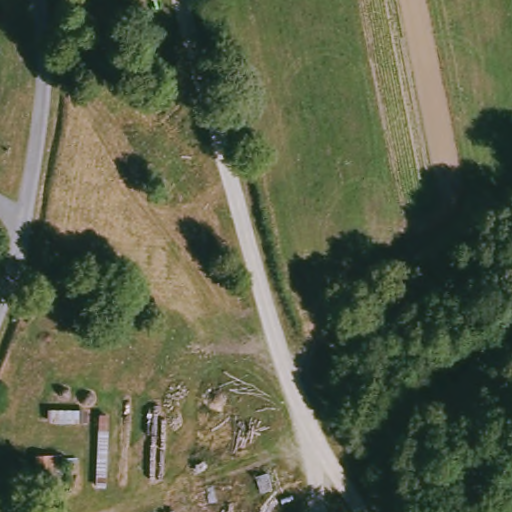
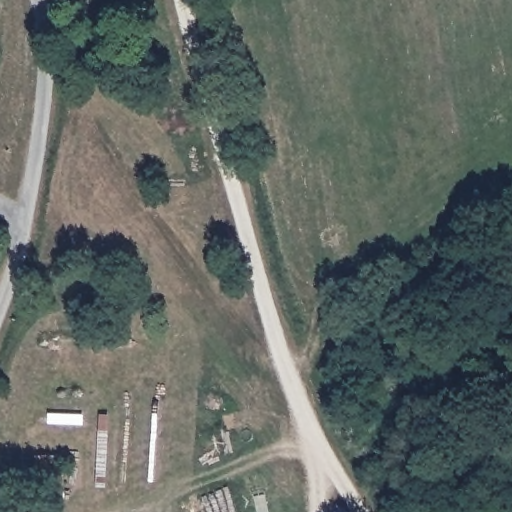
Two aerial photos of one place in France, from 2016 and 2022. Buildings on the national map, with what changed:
unchanged [(70,454),(73,505),(44,503),(38,455),(70,454)]

